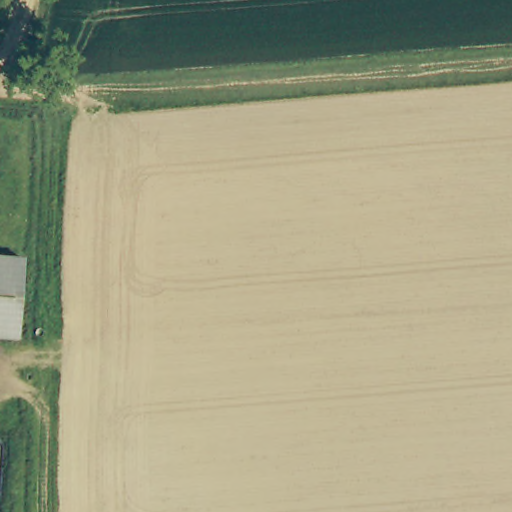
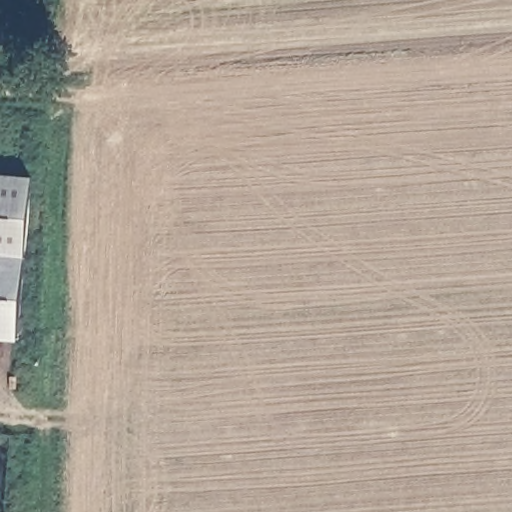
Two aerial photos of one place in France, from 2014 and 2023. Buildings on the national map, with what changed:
new [(31,178),(25,258),(0,256),(0,175),(31,178)]
unchanged [(25,258),(19,342),(0,340),(0,256),(25,258)]

